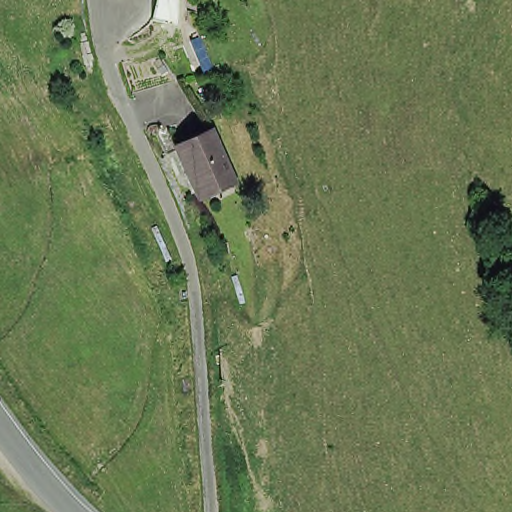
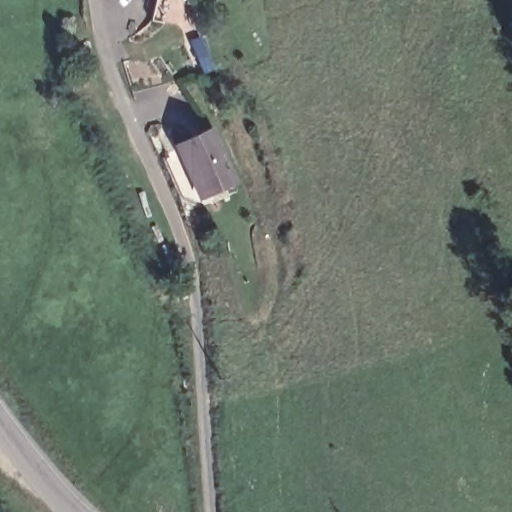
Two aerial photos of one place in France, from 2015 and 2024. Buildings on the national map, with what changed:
unchanged [(234,171),(197,186),(178,141),(216,126),(234,171)]

